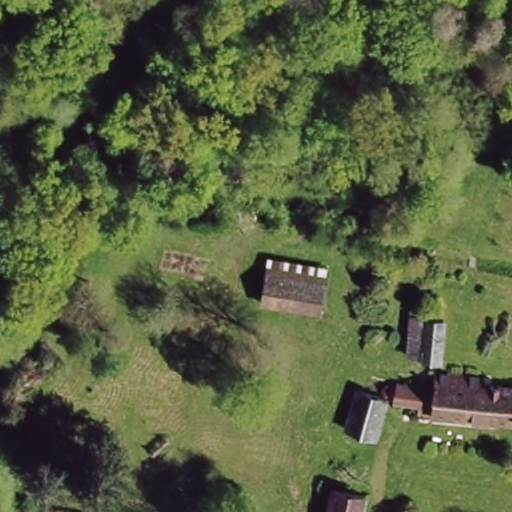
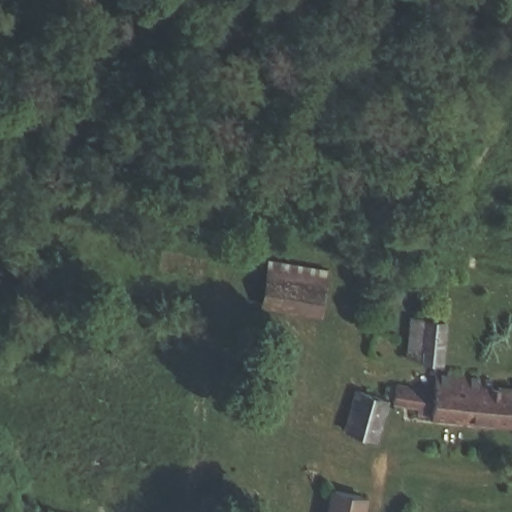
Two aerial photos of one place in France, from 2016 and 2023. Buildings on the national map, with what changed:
unchanged [(323,315),(262,312),(266,260),(331,267),(323,315)]
unchanged [(403,358),(408,312),(446,314),(439,361),(403,358)]
unchanged [(431,385),(435,374),(512,385),(512,420),(417,417),(418,408),(395,403),(396,380),(431,385)]
unchanged [(376,432),(340,423),(349,390),(385,395),(376,432)]
unchanged [(326,512),(332,484),(371,491),(366,512),(326,512)]

